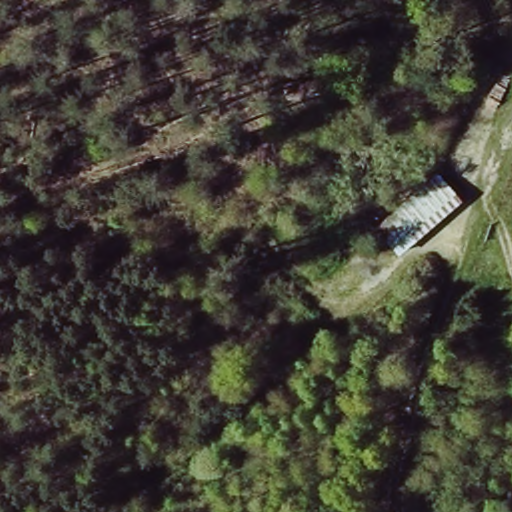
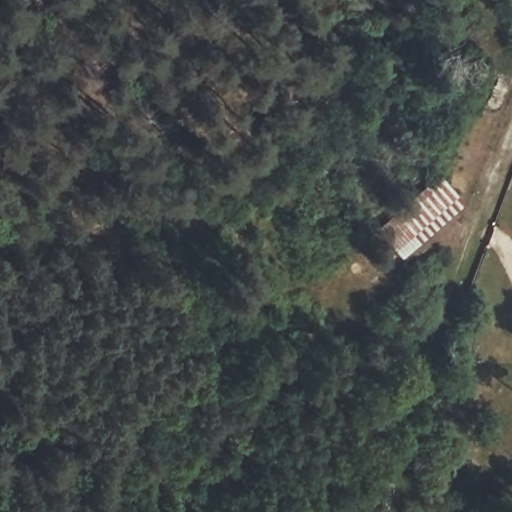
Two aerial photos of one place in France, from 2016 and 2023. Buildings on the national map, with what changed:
unchanged [(283,111),(281,75),(337,69),(342,102),(283,111)]
unchanged [(396,250),(375,225),(444,172),(465,202),(396,250)]
unchanged [(505,331),(482,341),(475,320),(498,311),(505,331)]

